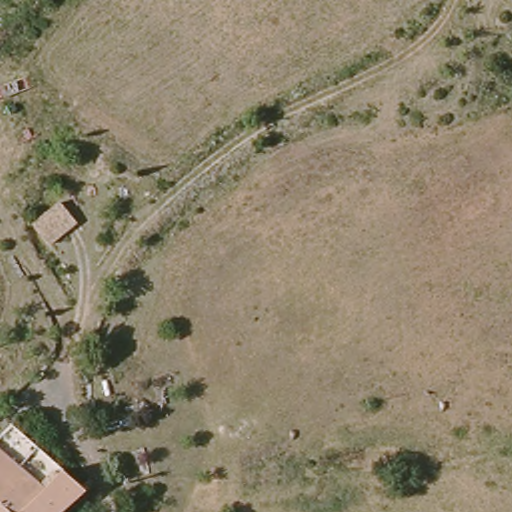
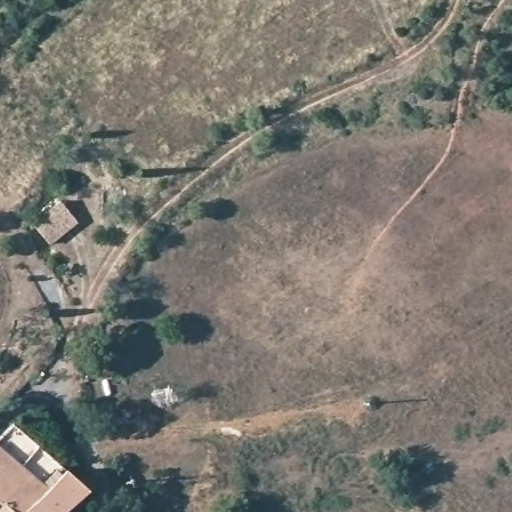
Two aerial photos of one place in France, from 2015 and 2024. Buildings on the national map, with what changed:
unchanged [(81,221),(52,246),(35,226),(62,204),(81,221)]
unchanged [(0,450),(0,422),(7,416),(39,449),(20,470),(0,450)]
unchanged [(40,490),(62,473),(80,493),(58,512),(0,512),(0,450),(20,470),(40,490)]

